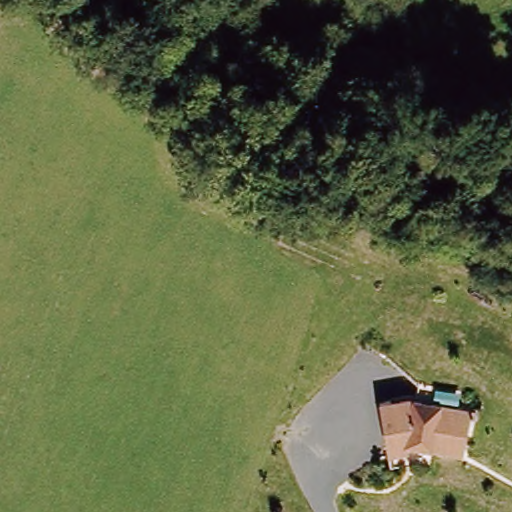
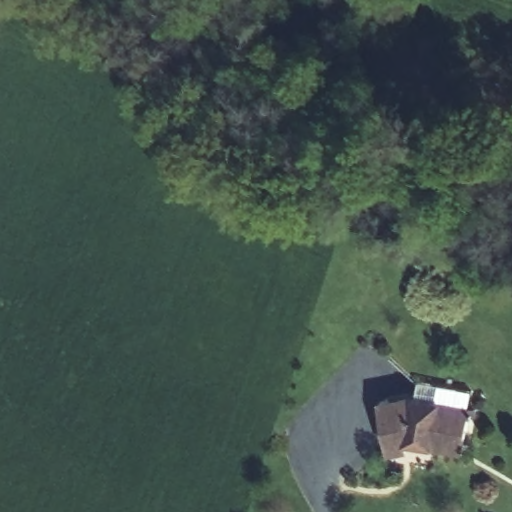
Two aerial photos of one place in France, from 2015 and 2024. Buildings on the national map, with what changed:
unchanged [(388,447),(387,440),(380,396),(408,391),(416,393),(420,376),(460,383),(456,400),(470,402),(462,446),(405,437),(406,444),(388,447)]

